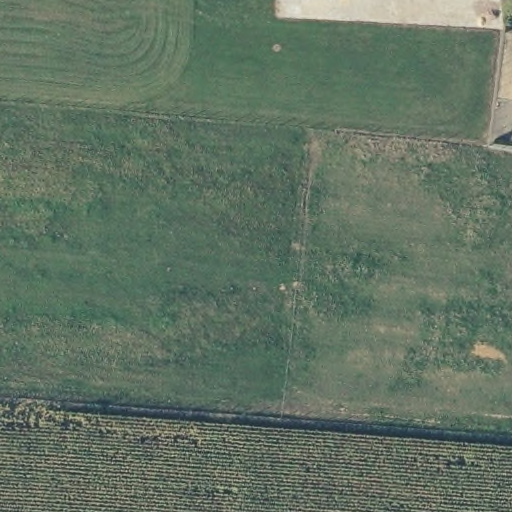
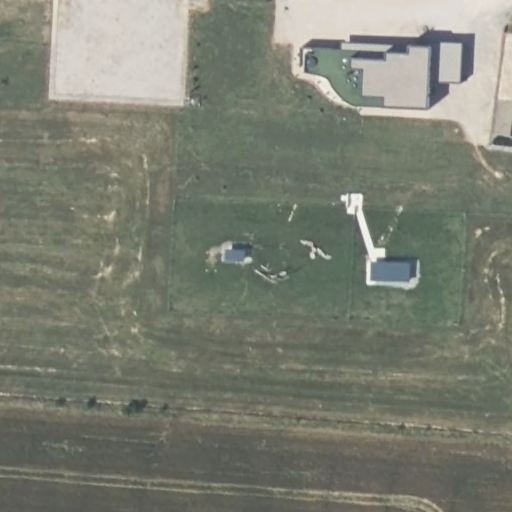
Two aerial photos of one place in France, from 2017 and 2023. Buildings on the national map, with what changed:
new [(430,84),(428,108),(385,107),(353,105),(350,103),(342,97),(335,90),(330,80),(326,75),(307,72),(308,54),(316,50),(342,50),(342,43),(462,44),(460,82),(430,84)]

